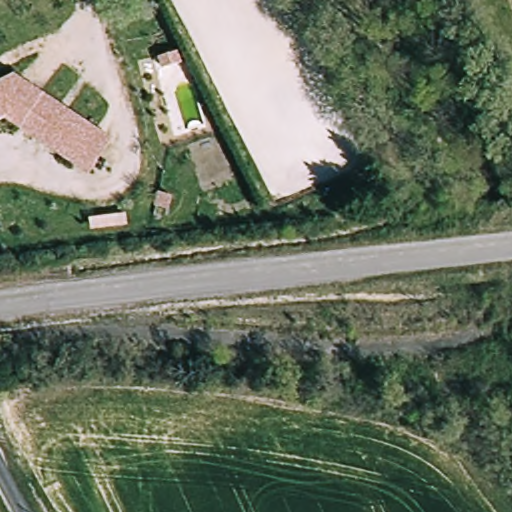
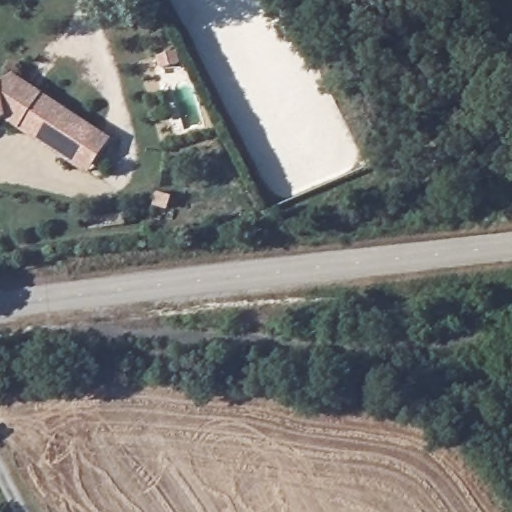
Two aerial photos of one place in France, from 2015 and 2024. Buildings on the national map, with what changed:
unchanged [(28,136),(0,119),(0,81),(15,73),(112,139),(88,175),(28,136)]

